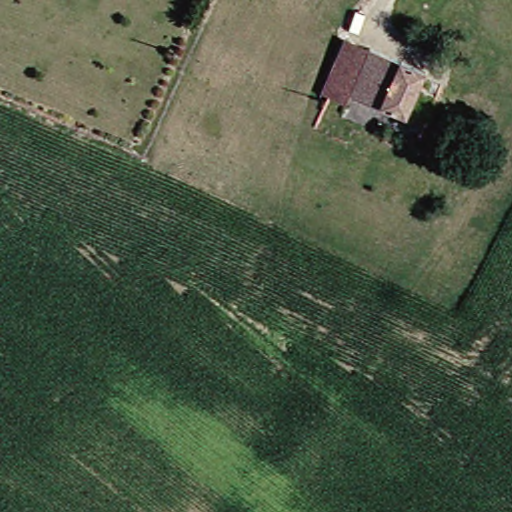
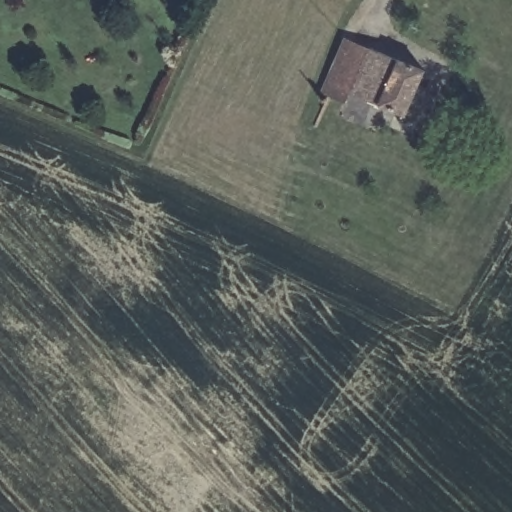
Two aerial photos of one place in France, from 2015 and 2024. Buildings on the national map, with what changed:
unchanged [(325,92),(328,84),(346,41),(368,50),(369,49),(425,72),(405,116),(350,93),(346,101),(325,92)]

